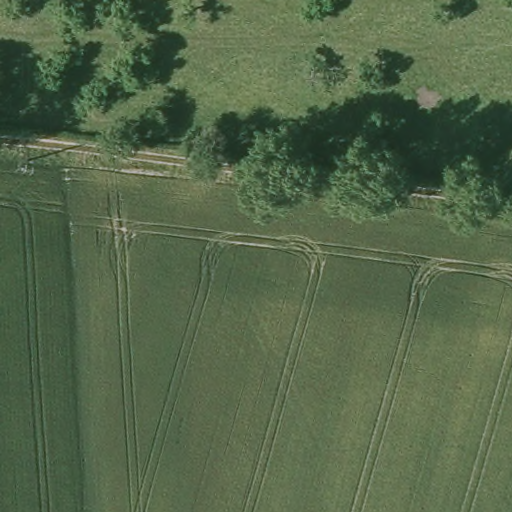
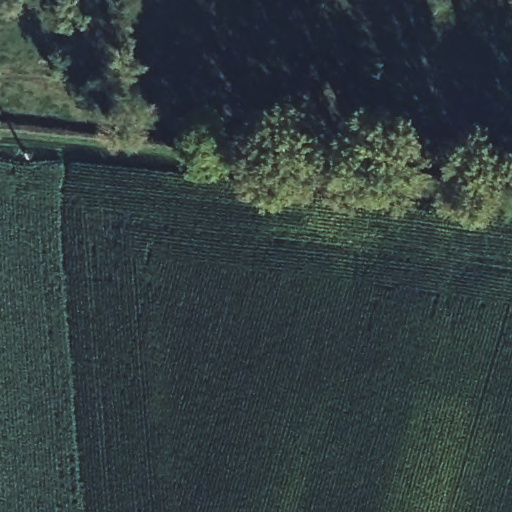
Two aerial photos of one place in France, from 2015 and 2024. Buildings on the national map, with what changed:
[]

